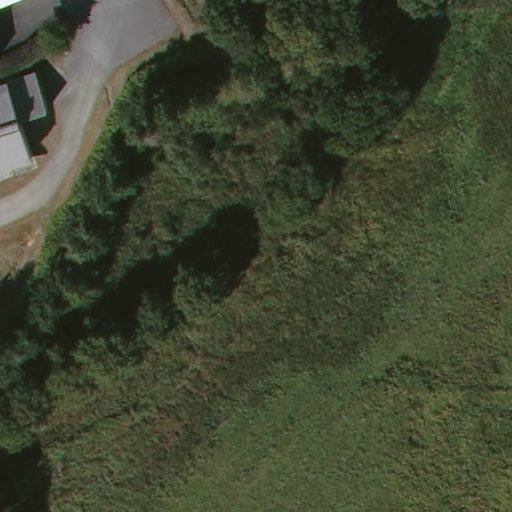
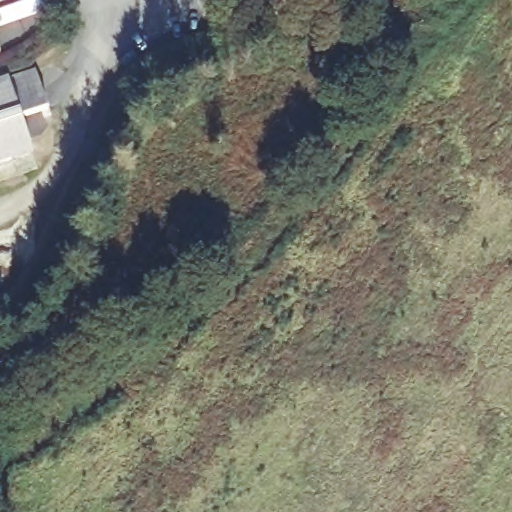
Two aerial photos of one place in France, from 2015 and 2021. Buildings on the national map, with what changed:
unchanged [(4,81),(32,73),(47,111),(21,121),(31,159),(0,165),(0,83),(4,81)]

